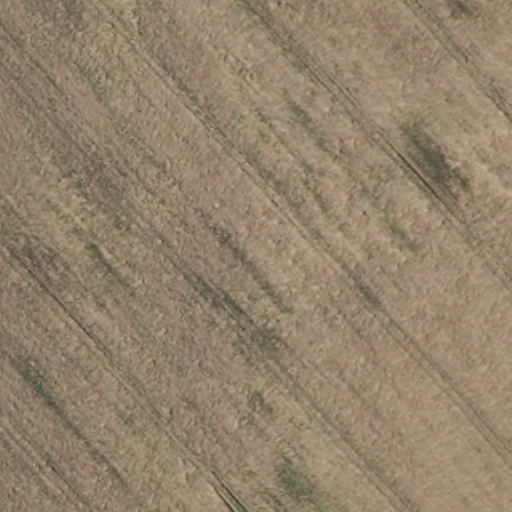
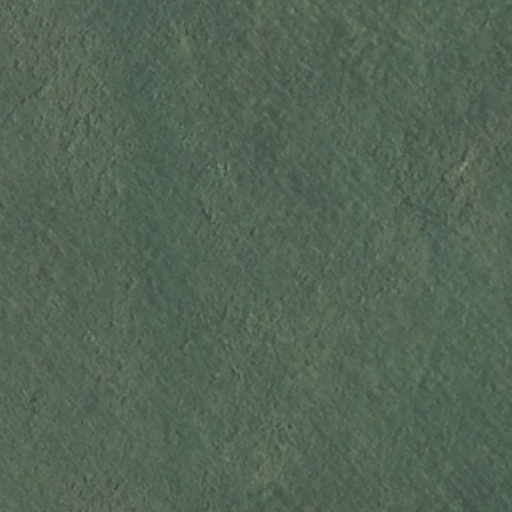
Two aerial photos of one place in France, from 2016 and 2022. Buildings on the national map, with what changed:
[]

